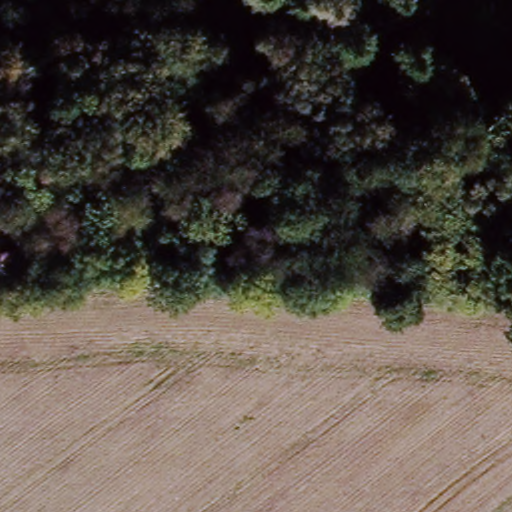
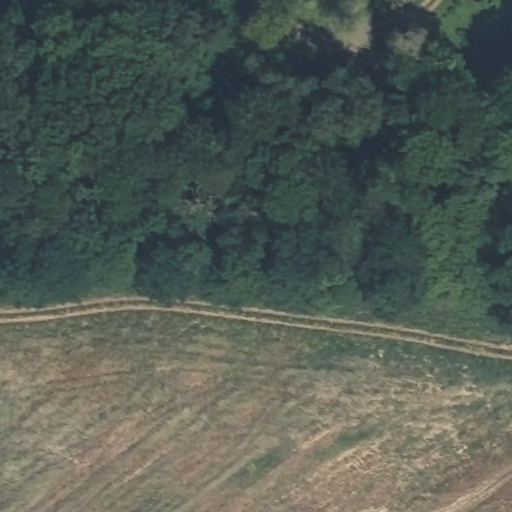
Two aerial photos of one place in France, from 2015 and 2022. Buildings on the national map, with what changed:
[]

